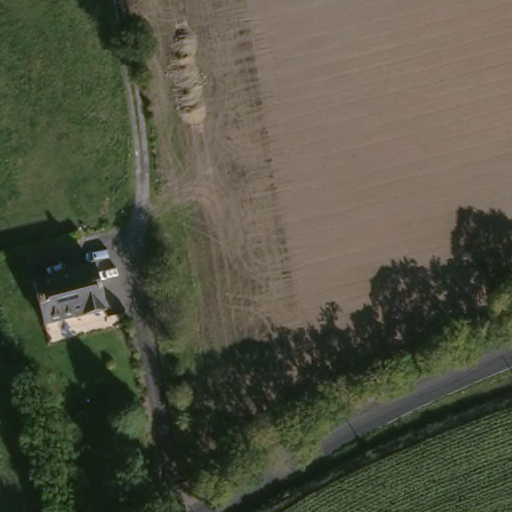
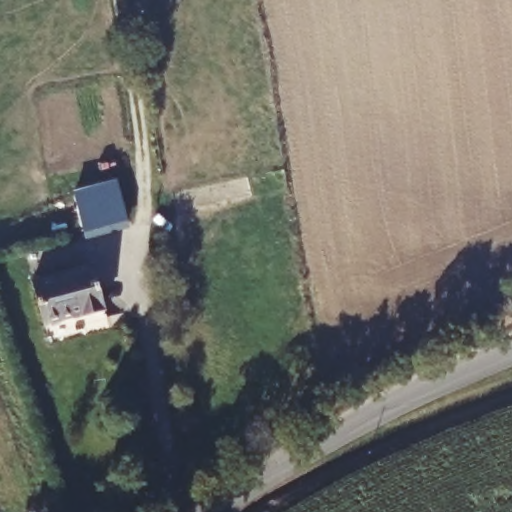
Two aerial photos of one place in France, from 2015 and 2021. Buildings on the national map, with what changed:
new [(127,221),(83,232),(73,190),(118,178),(127,221)]
unchanged [(88,268),(99,312),(37,326),(26,283),(88,268)]

